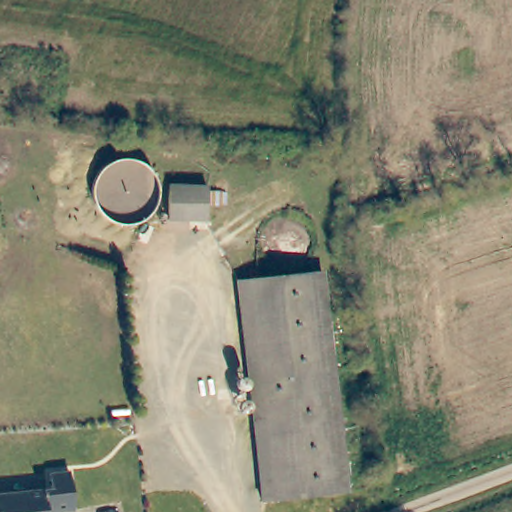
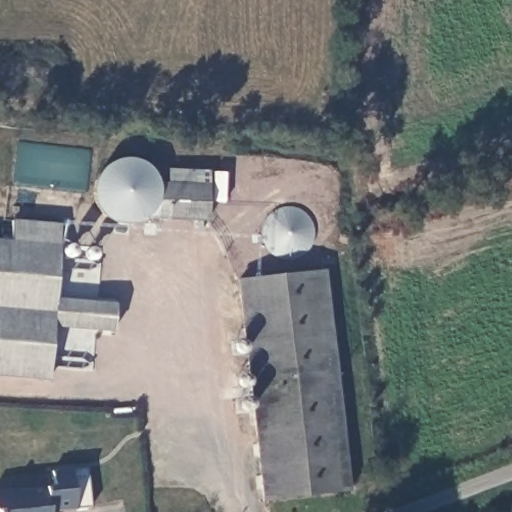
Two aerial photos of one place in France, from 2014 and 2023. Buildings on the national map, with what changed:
unchanged [(169,186),(206,186),(206,222),(169,222),(169,186)]
new [(51,328),(46,381),(0,377),(0,240),(9,241),(11,221),(62,224),(54,299),(114,303),(111,333),(51,328)]
unchanged [(239,282),(323,273),(345,492),(261,501),(239,282)]
unchanged [(48,472),(68,471),(71,510),(56,512),(0,512),(0,494),(50,488),(48,472)]

